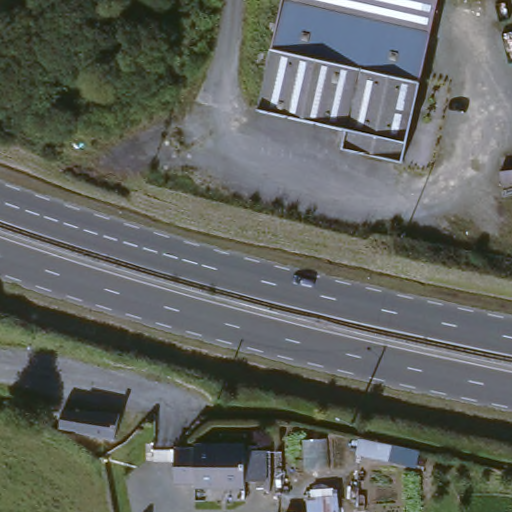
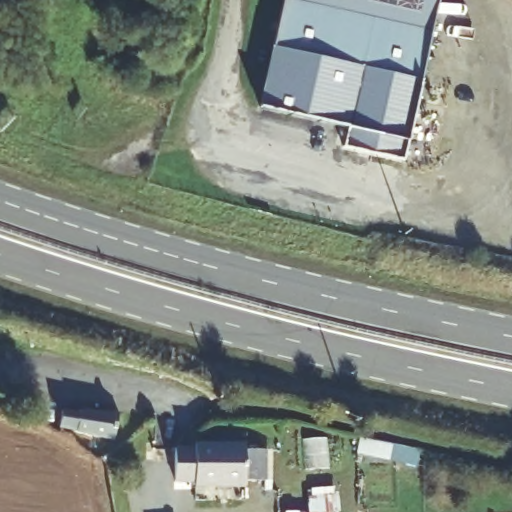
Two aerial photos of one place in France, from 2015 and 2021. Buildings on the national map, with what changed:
unchanged [(349,130),(251,102),(279,0),(437,0),(442,2),(399,169),(343,153),(349,130)]
unchanged [(114,440),(76,437),(76,428),(58,427),(58,412),(116,414),(114,440)]
unchanged [(192,494),(192,487),(171,487),(171,455),(191,456),(191,453),(243,452),(243,492),(192,494)]
unchanged [(279,490),(304,491),(305,502),(335,499),(337,512),(278,512),(279,490)]

